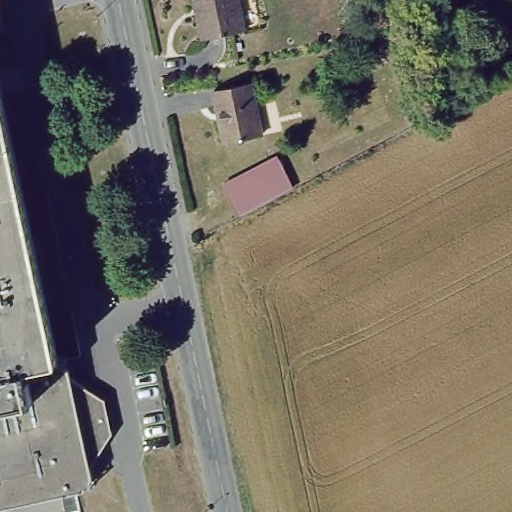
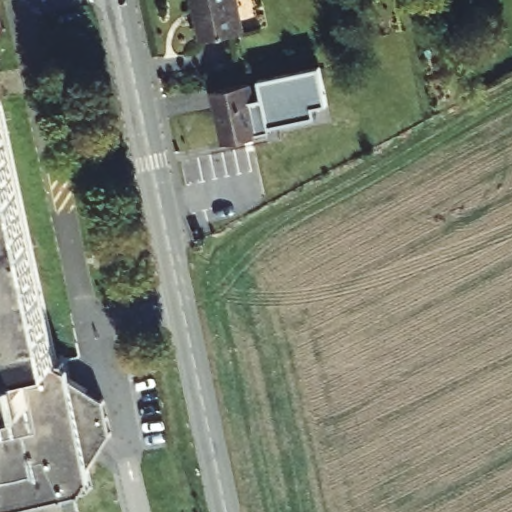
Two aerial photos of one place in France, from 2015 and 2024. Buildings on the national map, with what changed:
unchanged [(5,25),(0,27),(0,0),(1,0),(5,25)]
unchanged [(242,30),(203,39),(195,0),(236,0),(242,30)]
unchanged [(20,63),(27,96),(2,101),(7,104),(12,123),(8,130),(12,147),(57,348),(0,362),(0,67),(20,63)]
new [(268,94),(265,76),(327,63),(333,99),(320,101),(322,111),(275,121),(275,123),(265,125),(259,96),(268,94)]
unchanged [(255,84),(265,134),(228,141),(218,92),(255,84)]
unchanged [(57,348),(65,346),(69,366),(105,394),(113,432),(90,465),(94,485),(80,487),(85,512),(0,512),(0,362),(57,348)]

